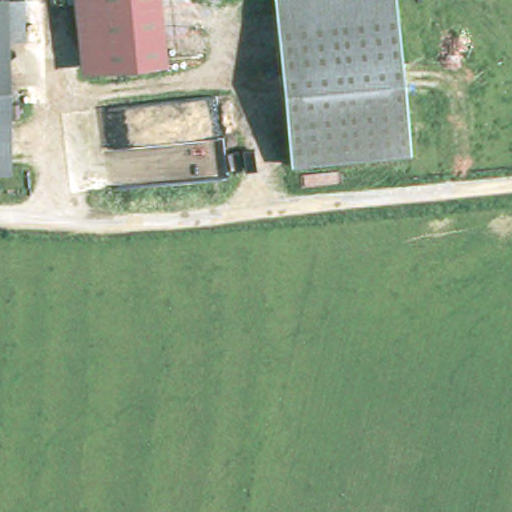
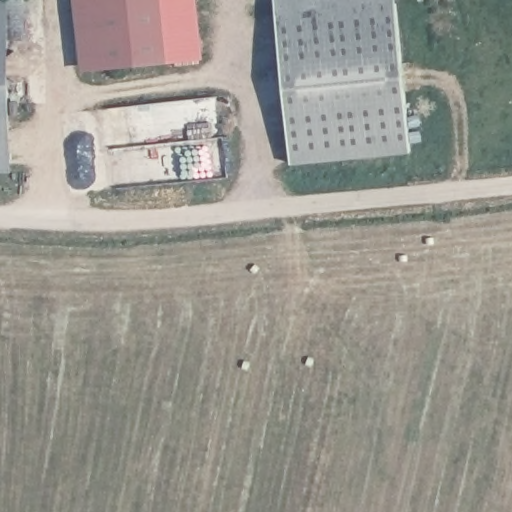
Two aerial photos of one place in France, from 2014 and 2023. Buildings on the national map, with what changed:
unchanged [(16,35),(0,35),(0,70),(0,0),(16,0),(16,35)]
unchanged [(157,64),(75,69),(70,0),(153,0),(157,64)]
unchanged [(405,143),(284,152),(273,2),(300,0),(395,0),(405,143)]

